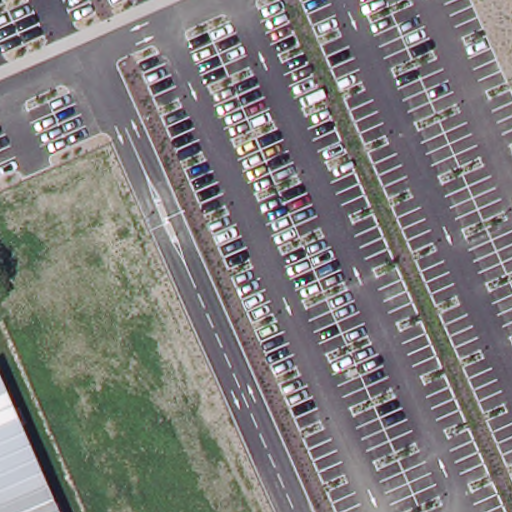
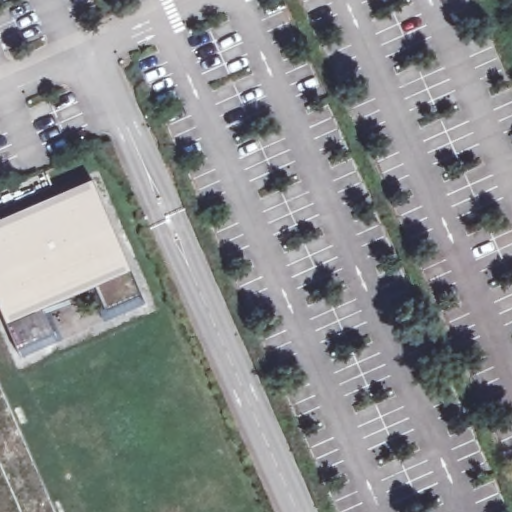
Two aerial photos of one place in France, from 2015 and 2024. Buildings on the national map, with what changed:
new [(0,312),(0,222),(91,183),(130,273),(139,296),(144,307),(102,323),(90,291),(47,308),(62,342),(20,360),(16,351),(6,327),(0,312)]
unchanged [(0,512),(0,388),(54,512),(0,512)]

